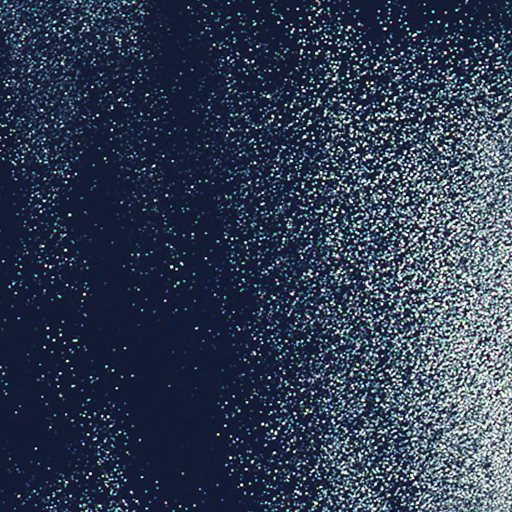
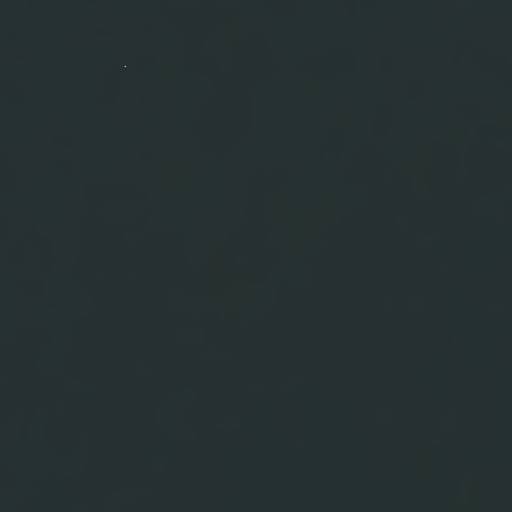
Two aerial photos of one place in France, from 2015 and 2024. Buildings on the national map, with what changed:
[]

